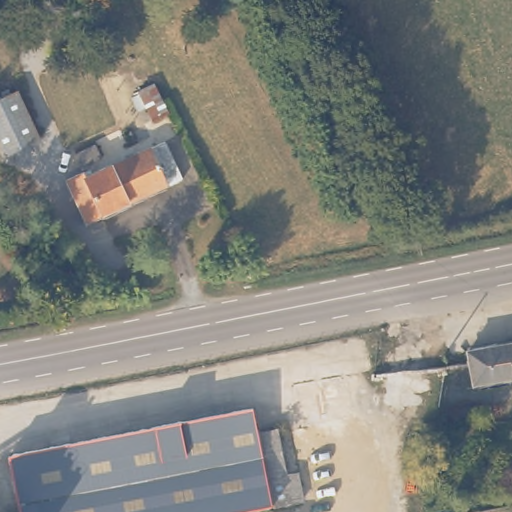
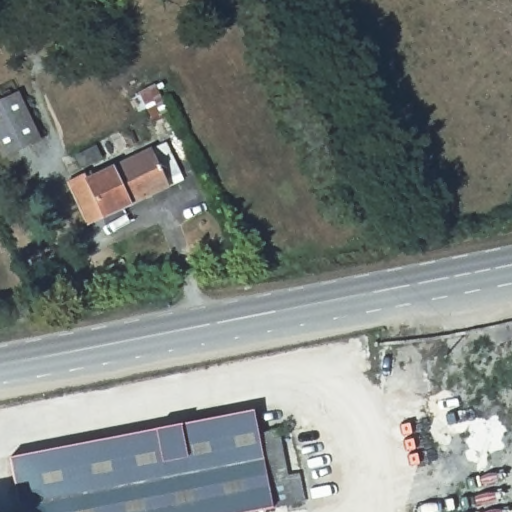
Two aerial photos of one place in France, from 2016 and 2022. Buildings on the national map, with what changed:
unchanged [(169,111),(152,120),(144,105),(137,109),(130,96),(135,93),(133,90),(152,80),(169,111)]
unchanged [(1,154),(0,152),(0,102),(19,93),(37,136),(1,154)]
unchanged [(184,170),(91,214),(72,172),(93,162),(98,171),(168,136),(184,170)]
demolished [(512,378),(471,387),(464,352),(512,343),(512,378)]
unchanged [(245,512),(22,512),(12,450),(253,408),(257,432),(280,428),(288,479),(302,477),(306,502),(291,504),(245,512)]
unchanged [(2,512),(0,512),(0,510),(1,509),(2,512)]

